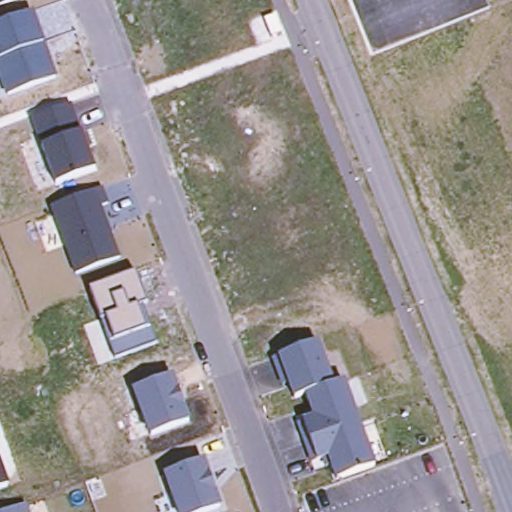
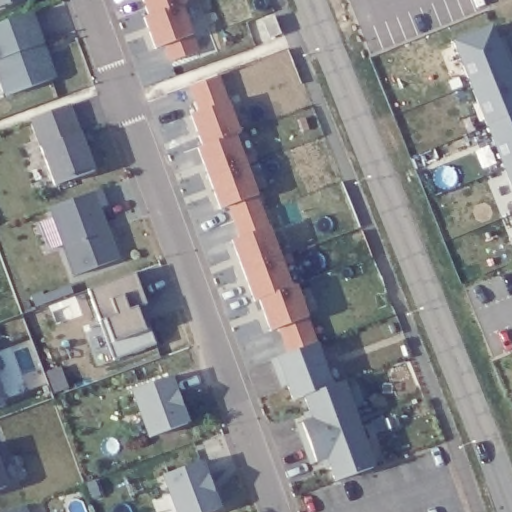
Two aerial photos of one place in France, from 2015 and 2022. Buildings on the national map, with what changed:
unchanged [(0,0),(23,0),(0,9),(0,0)]
new [(183,0),(190,0),(192,6),(179,11),(195,57),(167,69),(162,52),(153,56),(142,24),(146,22),(138,0),(180,0),(180,1),(183,0)]
unchanged [(44,45),(40,47),(45,61),(50,64),(57,80),(10,97),(0,72),(0,25),(32,14),(44,45)]
new [(270,22),(277,41),(267,45),(260,27),(270,22)]
new [(500,47),(507,45),(512,58),(512,59),(512,75),(474,90),(457,48),(495,33),(500,47)]
new [(230,101),(240,132),(237,135),(259,190),(271,227),(294,285),(297,282),(307,312),(309,315),(319,341),(316,342),(318,345),(290,356),(280,328),(271,331),(259,300),(254,302),(232,240),(243,237),(232,207),(219,210),(197,147),(202,147),(190,116),(199,113),(187,87),(219,74),(230,101)]
new [(491,132),(474,90),(512,75),(512,124),(491,132)]
unchanged [(82,135),(89,150),(97,172),(57,187),(32,120),(72,105),(82,135)]
new [(508,174),(491,132),(512,124),(512,172),(508,174)]
new [(508,174),(512,172),(512,184),(508,174)]
unchanged [(103,185),(109,201),(99,205),(107,226),(110,225),(121,255),(77,271),(52,204),(103,185)]
unchanged [(137,272),(148,305),(144,307),(157,345),(115,361),(90,290),(95,288),(137,272)]
unchanged [(328,460),(317,463),(310,445),(303,426),(314,421),(311,413),(316,411),(310,396),(300,400),(295,386),(289,387),(284,375),(278,360),(322,343),(337,386),(348,382),(364,425),(379,468),(342,482),(337,466),(332,468),(328,460)]
unchanged [(172,377),(177,392),(176,392),(182,407),(183,407),(189,423),(152,437),(134,391),(172,377)]
unchanged [(208,476),(210,476),(215,492),(214,492),(220,508),(211,512),(179,512),(165,476),(202,462),(208,476)]
unchanged [(0,490),(0,464),(9,487),(0,490)]
unchanged [(27,512),(4,512),(25,505),(27,512)]

